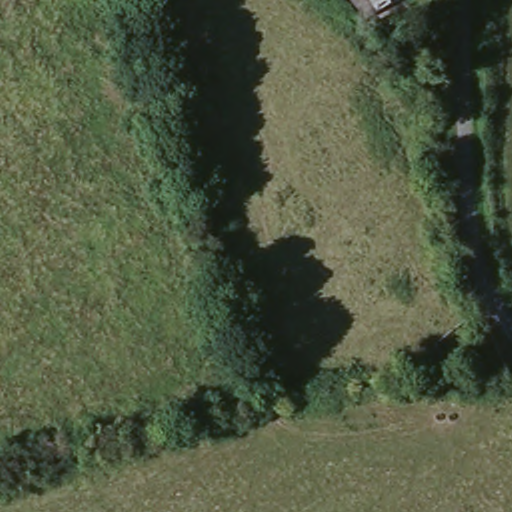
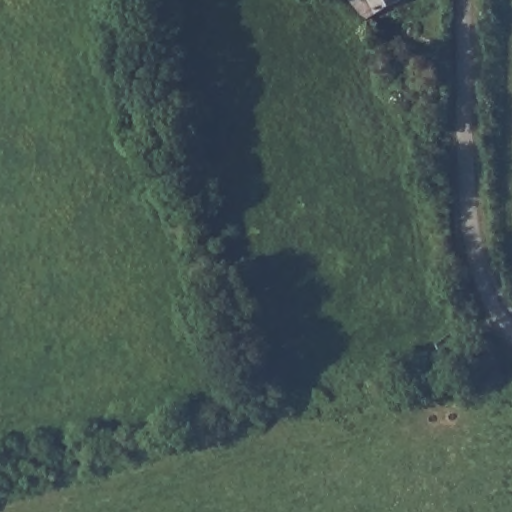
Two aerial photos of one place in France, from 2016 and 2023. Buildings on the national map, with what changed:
unchanged [(360,0),(394,0),(371,13),(360,0)]

